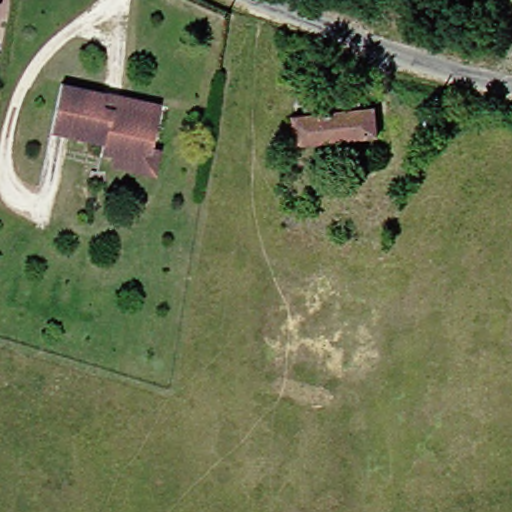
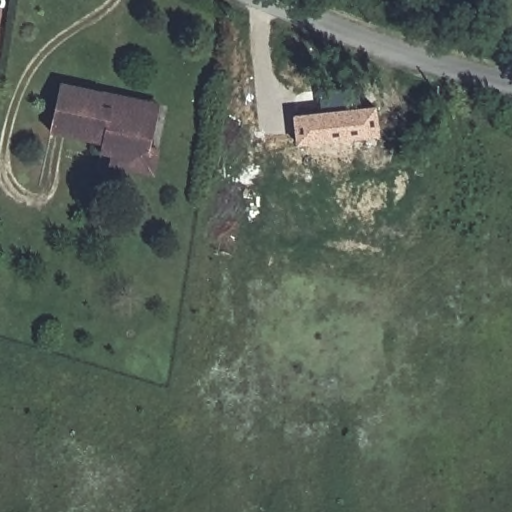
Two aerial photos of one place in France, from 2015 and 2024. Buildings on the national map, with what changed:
unchanged [(112,166),(113,159),(100,154),(101,145),(69,139),(51,135),(61,88),(70,90),(107,96),(161,106),(159,117),(152,154),(161,158),(158,176),(112,166)]
unchanged [(332,158),(332,143),(303,144),(301,93),(379,91),(381,139),(358,141),(359,158),(332,158)]

